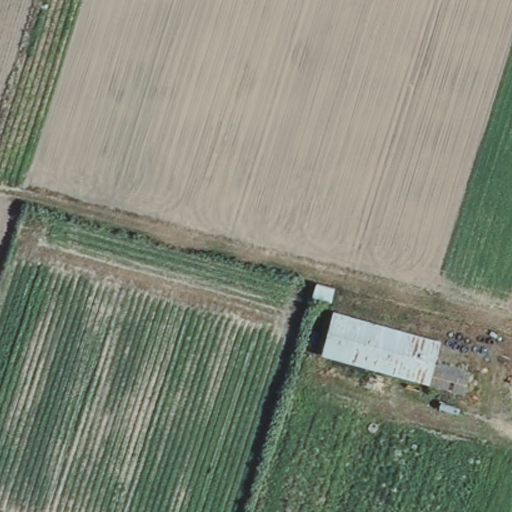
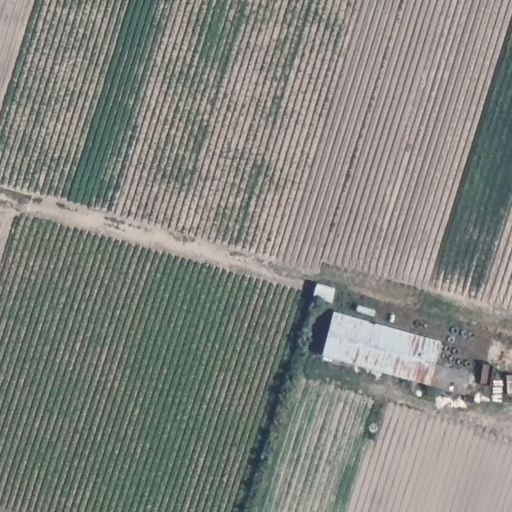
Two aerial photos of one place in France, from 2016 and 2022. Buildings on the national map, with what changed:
unchanged [(339,288),(334,303),(317,298),(322,284),(339,288)]
unchanged [(338,315),(445,344),(439,367),(475,377),(470,394),(327,355),(338,315)]

